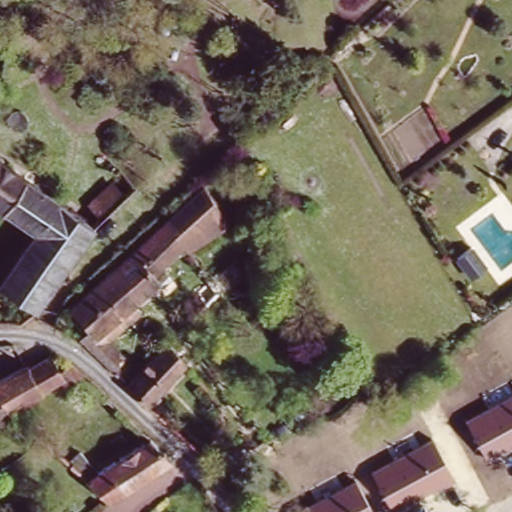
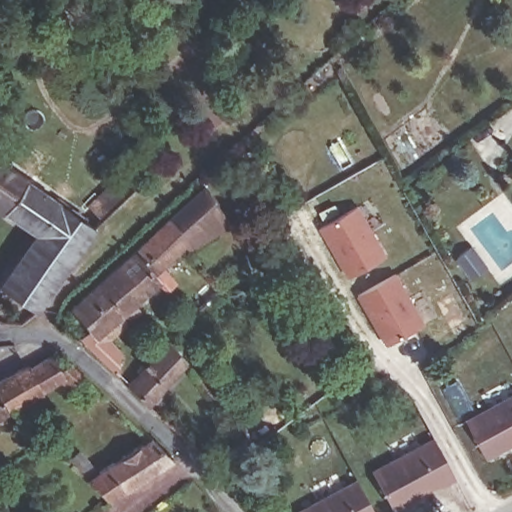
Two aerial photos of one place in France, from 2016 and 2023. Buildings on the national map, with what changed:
unchanged [(44,241),(0,210),(0,165),(62,208),(44,241)]
unchanged [(78,329),(90,317),(74,297),(176,206),(195,187),(216,210),(195,228),(172,251),(177,258),(165,269),(170,276),(164,281),(159,276),(144,290),(148,296),(117,325),(127,336),(120,350),(123,353),(119,361),(104,347),(78,329)]
new [(359,206),(386,256),(346,279),(317,229),(359,206)]
unchanged [(95,231),(37,315),(7,297),(44,241),(62,208),(95,231)]
unchanged [(475,247),(489,267),(475,277),(460,257),(475,247)]
new [(397,274),(424,323),(385,345),(357,297),(397,274)]
unchanged [(124,382),(167,339),(185,360),(141,402),(124,382)]
unchanged [(30,367),(54,355),(57,359),(64,355),(86,375),(77,382),(70,374),(25,401),(28,407),(16,416),(9,409),(0,393),(0,379),(29,363),(30,367)]
unchanged [(0,414),(0,393),(9,409),(0,414)]
unchanged [(487,459),(465,418),(512,394),(512,445),(487,459)]
unchanged [(457,480),(439,489),(437,486),(392,511),(370,469),(433,437),(457,480)]
unchanged [(104,500),(82,480),(100,468),(147,438),(170,459),(117,494),(105,502),(104,500)]
unchanged [(295,512),(355,480),(373,512),(295,512)]

